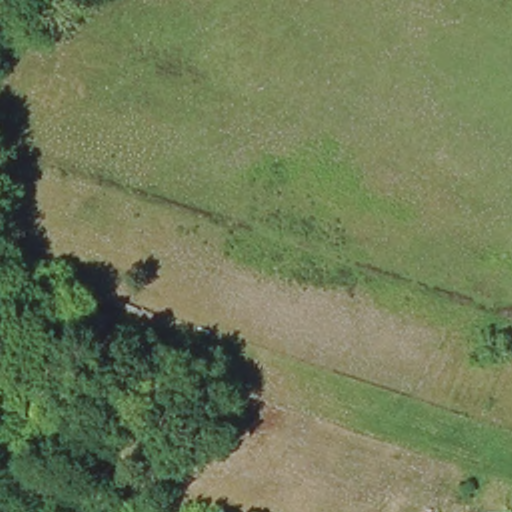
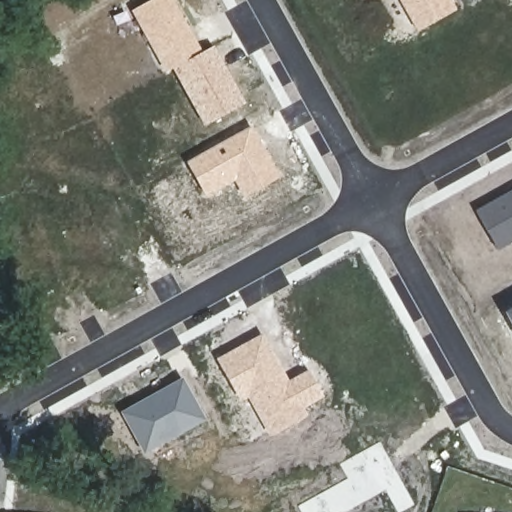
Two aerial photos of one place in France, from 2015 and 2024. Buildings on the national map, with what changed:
new [(167,72),(132,10),(150,0),(175,0),(203,50),(215,45),(246,102),(205,125),(174,68),(167,72)]
new [(451,0),(457,10),(418,32),(399,0),(451,0)]
new [(281,178),(245,197),(235,180),(206,196),(188,163),(254,127),(281,178)]
new [(474,210),(512,188),(512,243),(498,251),(474,210)]
new [(512,308),(512,326),(505,312),(512,308)]
new [(270,435),(249,398),(240,402),(217,359),(263,334),(289,380),(309,369),(323,397),(304,407),(308,414),(270,435)]
new [(183,378),(206,420),(145,453),(121,411),(183,378)]

